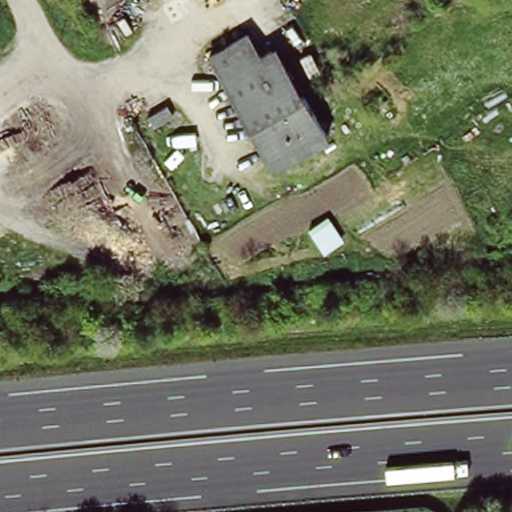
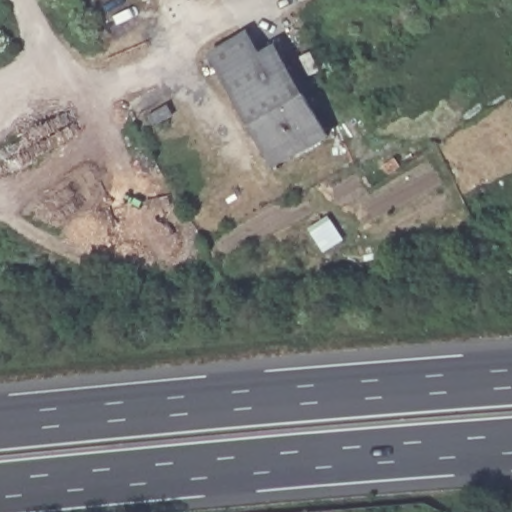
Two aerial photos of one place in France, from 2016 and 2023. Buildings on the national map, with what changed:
unchanged [(253,34),(266,56),(281,48),(334,143),(279,172),(212,58),(253,34)]
unchanged [(337,48),(338,50),(353,42),(352,39),(357,36),(366,50),(359,55),(362,60),(355,63),(352,58),(341,64),(332,51),(337,48)]
unchanged [(149,116),(168,105),(174,115),(155,125),(149,116)]
unchanged [(319,253),(304,232),(328,217),(344,239),(319,253)]

